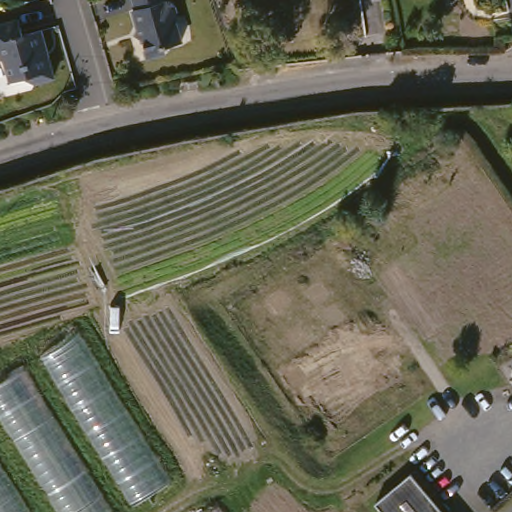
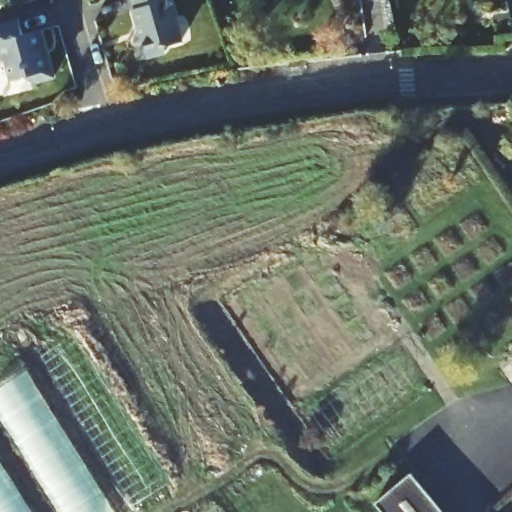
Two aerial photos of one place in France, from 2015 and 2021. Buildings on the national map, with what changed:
unchanged [(175,1),(178,0),(180,0),(181,5),(185,16),(182,17),(189,44),(172,49),(174,52),(157,57),(152,40),(143,35),(147,29),(141,10),(144,10),(141,0),(175,0),(175,1)]
unchanged [(31,32),(51,27),(56,45),(52,46),(55,55),(57,55),(63,75),(45,81),(34,75),(20,79),(14,58),(7,55),(4,41),(0,43),(0,25),(27,17),(31,32)]
unchanged [(65,512),(0,405),(0,383),(78,333),(171,482),(124,512),(65,512)]
unchanged [(389,512),(381,503),(417,472),(451,512),(389,512)]
unchanged [(215,512),(225,505),(230,512),(215,512)]

